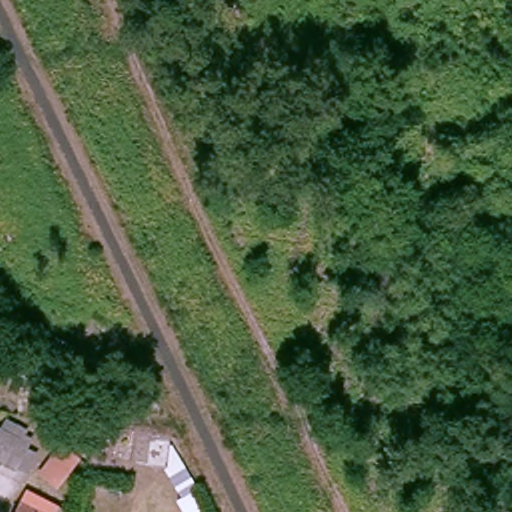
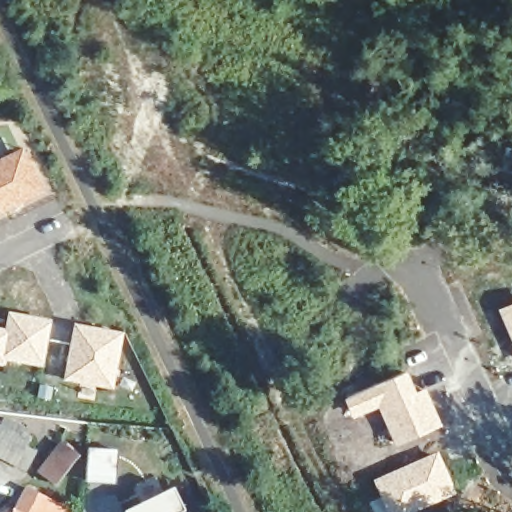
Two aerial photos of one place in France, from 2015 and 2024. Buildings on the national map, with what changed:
new [(0,215),(0,159),(25,146),(47,191),(0,215)]
new [(498,309),(512,303),(512,340),(498,309)]
new [(6,361),(5,366),(0,365),(0,329),(5,330),(9,312),(52,320),(43,368),(6,361)]
new [(114,391),(64,382),(75,325),(124,333),(114,391)]
new [(426,386),(442,424),(396,445),(379,406),(355,416),(346,397),(407,369),(417,390),(426,386)]
unchanged [(17,460),(0,452),(0,424),(28,437),(17,460)]
unchanged [(30,470),(49,435),(72,450),(47,485),(30,470)]
new [(414,512),(387,512),(373,481),(439,453),(457,493),(414,512)]
new [(175,489),(184,510),(185,512),(128,512),(175,489)]
unchanged [(34,502),(57,512),(29,512),(34,502)]
unchanged [(17,508),(26,512),(15,512),(17,508)]

